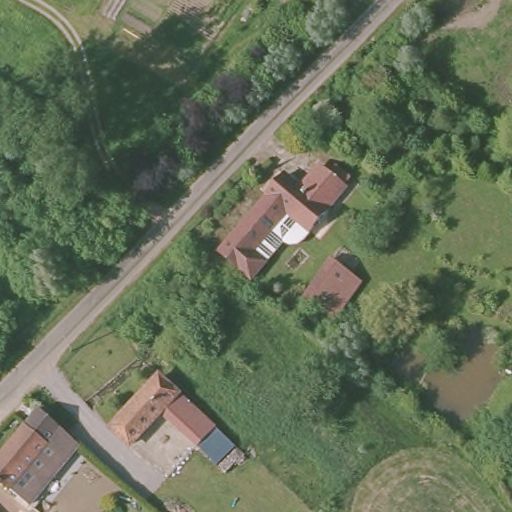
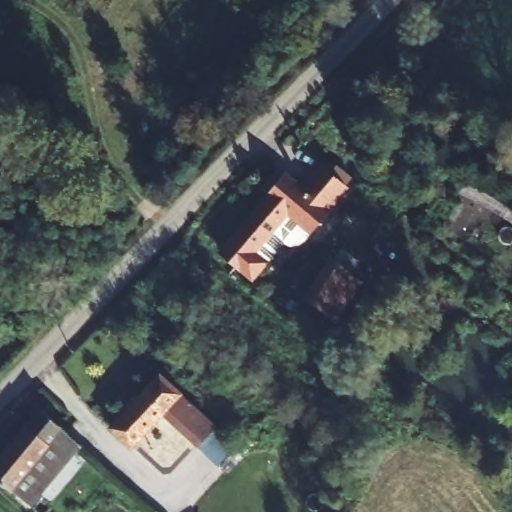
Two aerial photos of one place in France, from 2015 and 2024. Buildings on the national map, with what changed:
unchanged [(280,177),(299,193),(317,170),(344,192),(308,235),(285,215),(251,257),(259,266),(250,279),(219,254),(267,200),(263,197),(280,177)]
unchanged [(327,269),(338,256),(356,271),(346,285),(318,323),(296,308),(327,269)]
unchanged [(220,462),(199,444),(163,411),(130,447),(110,428),(156,377),(212,430),(233,447),(220,462)]
unchanged [(60,432),(7,487),(0,482),(0,455),(39,412),(60,432)]
unchanged [(60,432),(78,447),(31,505),(7,487),(60,432)]

